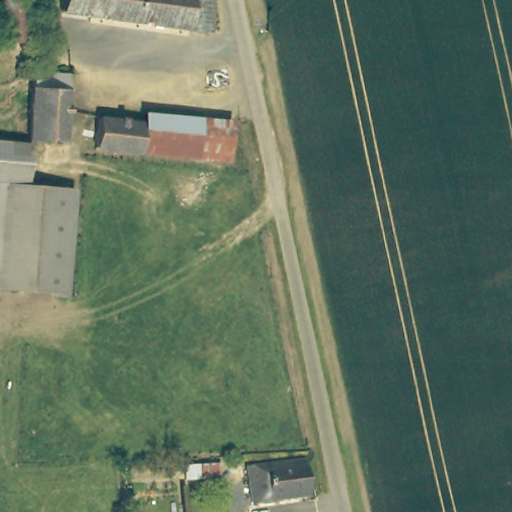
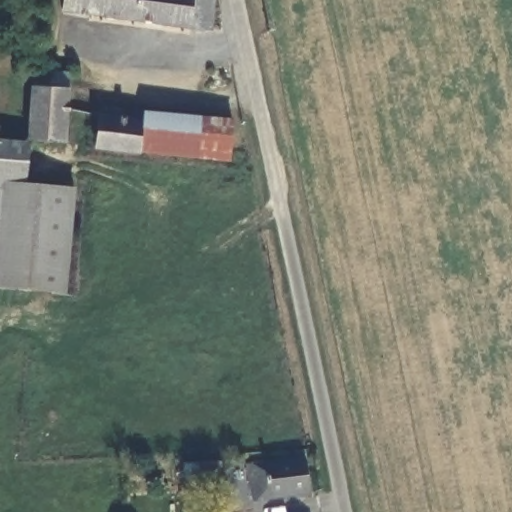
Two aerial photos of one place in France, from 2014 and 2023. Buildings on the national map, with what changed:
unchanged [(25,0),(26,32),(2,34),(1,0),(25,0)]
unchanged [(65,19),(67,0),(213,0),(215,6),(213,39),(65,19)]
unchanged [(74,76),(64,147),(30,144),(37,72),(74,76)]
unchanged [(146,121),(232,127),(228,167),(144,158),(145,129),(146,121)]
unchanged [(100,154),(103,125),(145,129),(144,158),(100,154)]
unchanged [(30,148),(26,186),(0,183),(0,145),(30,148)]
unchanged [(61,212),(55,296),(0,291),(0,186),(62,192),(61,197),(61,212)]
unchanged [(307,498),(254,502),(249,467),(305,460),(307,498)]

